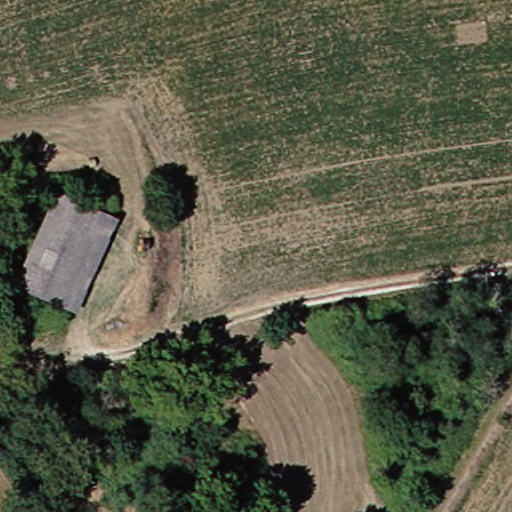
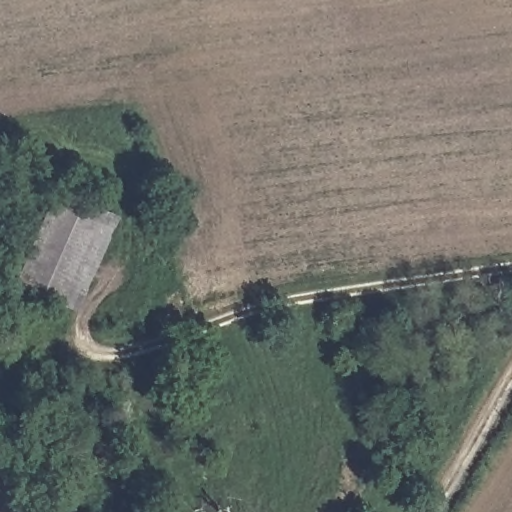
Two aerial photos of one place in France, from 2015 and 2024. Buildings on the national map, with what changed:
unchanged [(23,284),(66,192),(110,214),(67,305),(23,284)]
unchanged [(110,214),(125,221),(83,313),(67,305),(110,214)]

